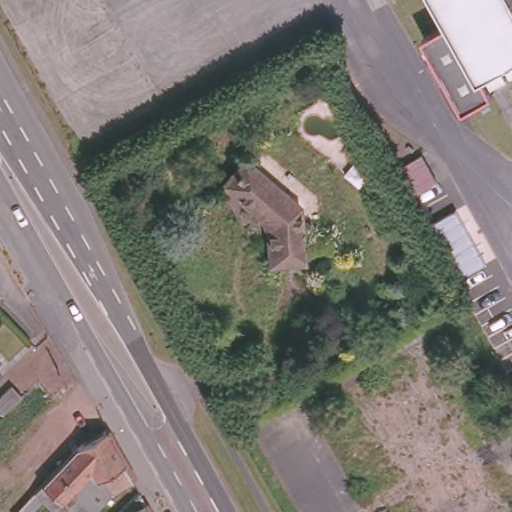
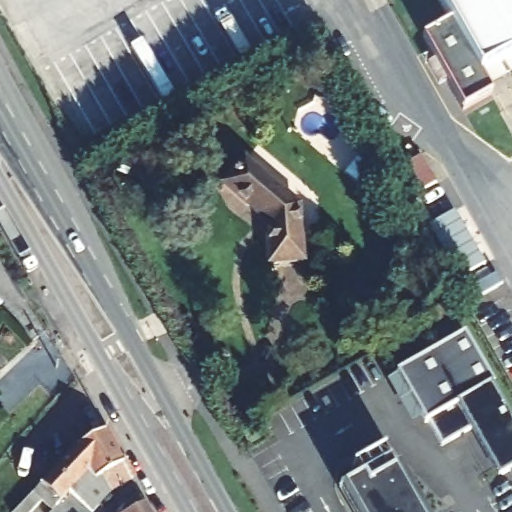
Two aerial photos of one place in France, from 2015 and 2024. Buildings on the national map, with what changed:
unchanged [(481,76),(493,96),(462,113),(423,38),(449,22),(437,0),(512,0),(512,60),(481,76)]
unchanged [(394,168),(397,167),(422,152),(438,180),(410,196),(394,168)]
unchanged [(310,260),(279,262),(277,232),(271,220),(229,184),(251,159),(307,207),(310,260)]
new [(434,223),(457,211),(486,264),(463,276),(434,223)]
new [(498,472),(470,425),(443,443),(431,417),(426,419),(399,371),(464,334),(492,381),(512,419),(512,465),(498,472)]
unchanged [(21,391),(1,409),(0,408),(0,390),(10,380),(21,391)]
unchanged [(83,446),(110,431),(138,482),(117,493),(98,512),(95,512),(75,492),(57,510),(48,502),(38,512),(21,512),(39,493),(83,446)]
new [(364,474),(370,482),(400,464),(427,512),(357,512),(343,486),(364,474)]
unchanged [(123,512),(148,499),(156,512),(123,512)]

